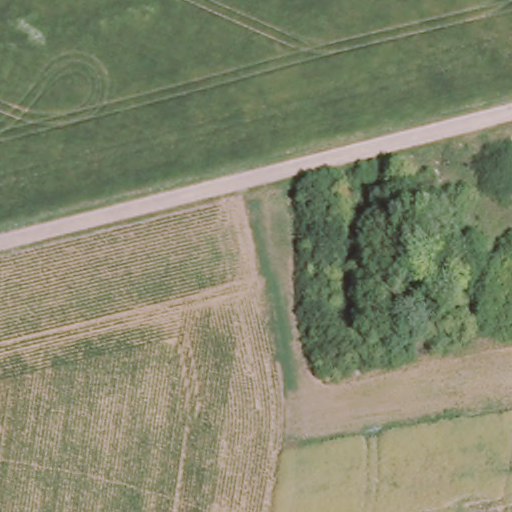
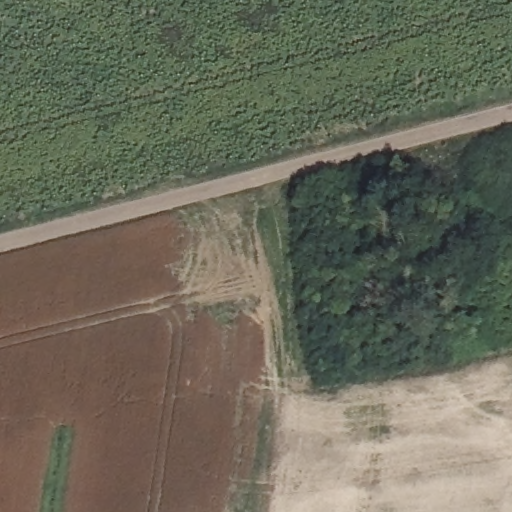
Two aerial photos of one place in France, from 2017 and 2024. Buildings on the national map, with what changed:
unchanged [(338,202),(420,183),(454,328),(371,347),(338,202)]

